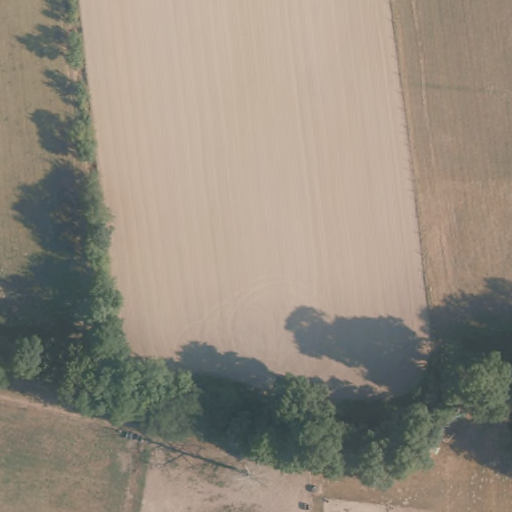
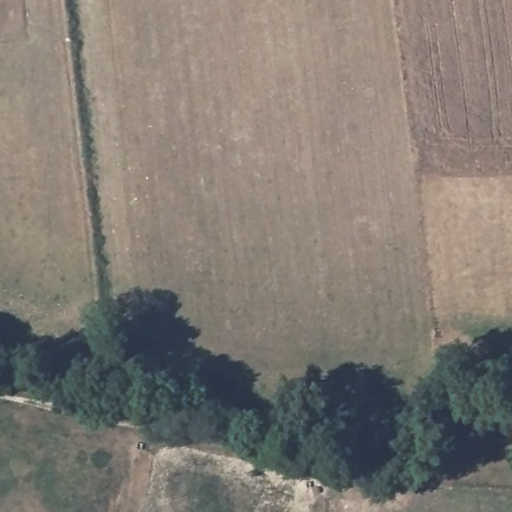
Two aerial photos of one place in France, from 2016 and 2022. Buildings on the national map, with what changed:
[]

